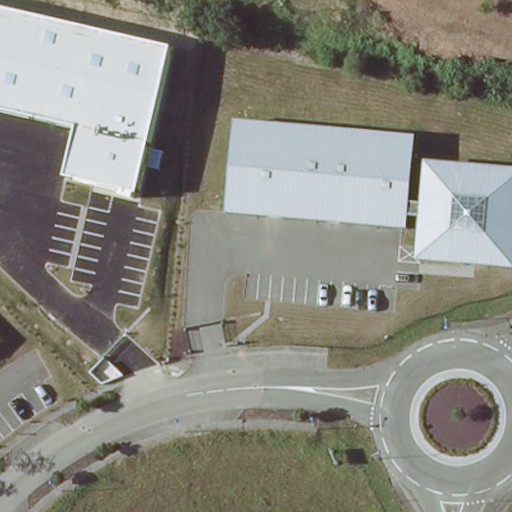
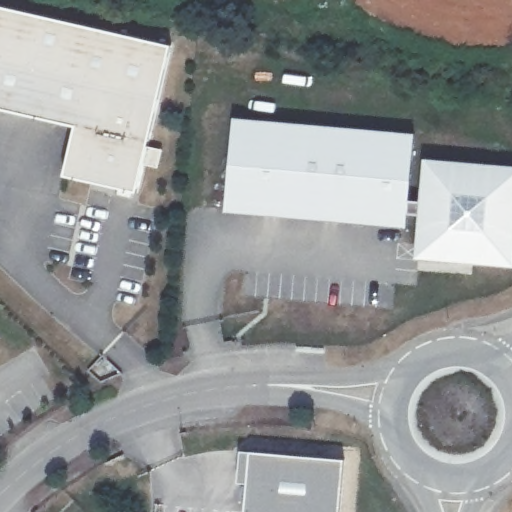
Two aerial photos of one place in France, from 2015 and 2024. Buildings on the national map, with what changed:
unchanged [(138,194),(65,176),(77,126),(0,109),(0,8),(171,47),(138,194)]
unchanged [(225,219),(238,119),(422,137),(414,204),(427,205),(432,164),(512,172),(512,272),(420,265),(427,221),(411,219),(409,235),(225,219)]
new [(249,453),(344,460),(340,512),(244,512),(247,485),(237,485),(239,452),(249,453)]

